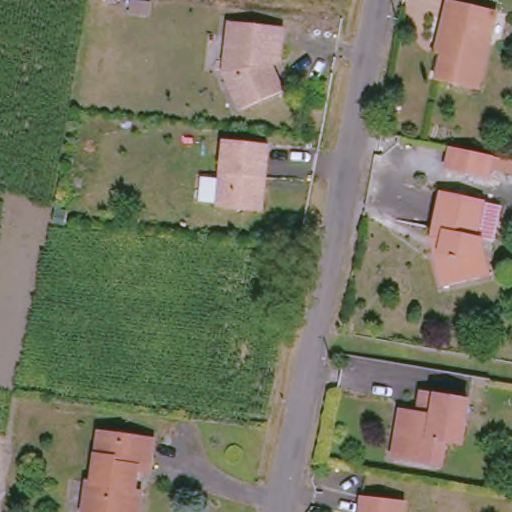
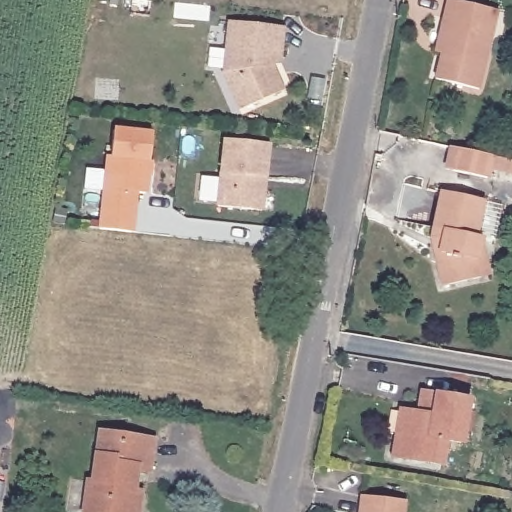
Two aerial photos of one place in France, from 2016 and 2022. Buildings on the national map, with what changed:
unchanged [(438,41),(448,0),(451,0),(497,11),(478,90),(435,79),(441,54),(436,53),(438,41)]
unchanged [(228,78),(235,27),(288,32),(285,64),(277,63),(276,68),(288,96),(245,115),(228,78)]
new [(97,229),(105,156),(110,157),(113,128),(152,132),(148,162),(153,162),(151,177),(149,177),(147,193),(137,192),(133,232),(97,229)]
unchanged [(254,210),(218,207),(225,140),(268,145),(265,178),(261,211),(254,210)]
unchanged [(487,179),(453,171),(446,170),(451,148),(458,149),(468,151),(492,156),(512,160),(512,173),(490,168),(487,179)]
unchanged [(480,282),(480,283),(443,291),(436,259),(432,243),(435,234),(442,196),(483,205),(475,241),(482,243),(485,264),(488,280),(480,282)]
unchanged [(423,418),(425,411),(427,398),(474,406),(466,448),(451,446),(446,470),(405,463),(398,461),(406,415),(413,416),(423,418)]
unchanged [(84,512),(87,487),(92,487),(100,436),(155,444),(150,478),(138,476),(135,496),(142,497),(140,512),(84,512)]
unchanged [(405,501),(404,512),(360,512),(362,496),(405,501)]

